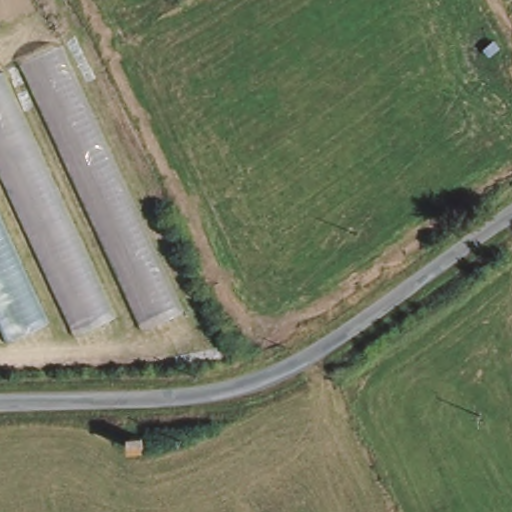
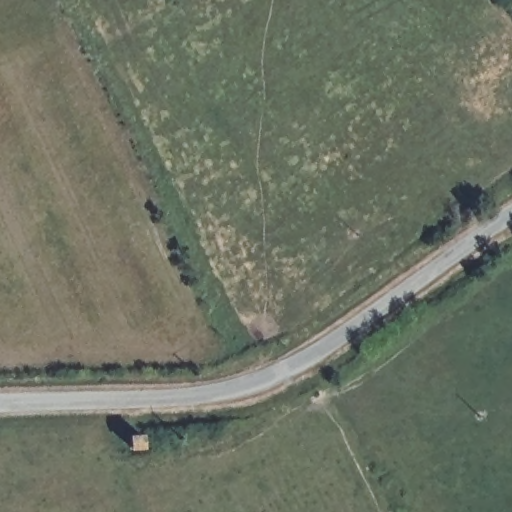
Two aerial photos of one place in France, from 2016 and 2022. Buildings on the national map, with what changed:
demolished [(145,332),(19,67),(66,47),(187,312),(145,332)]
demolished [(0,174),(0,74),(4,72),(116,318),(75,337),(0,174)]
demolished [(0,330),(0,217),(50,326),(6,345),(0,330)]

